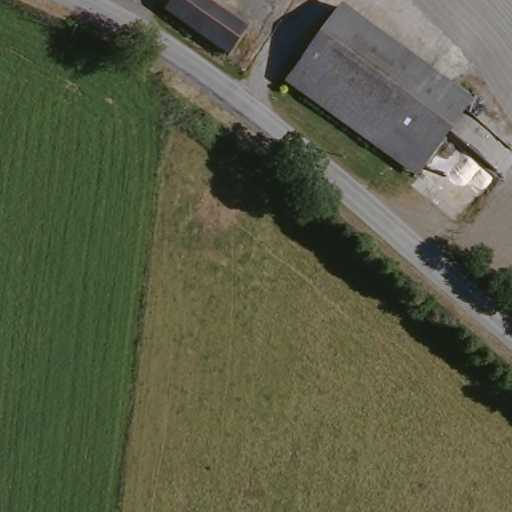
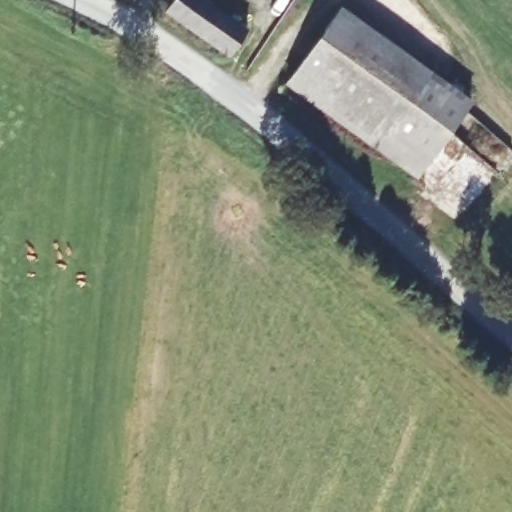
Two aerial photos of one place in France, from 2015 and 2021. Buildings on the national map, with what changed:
unchanged [(170,0),(205,0),(245,28),(227,56),(162,11),(170,0)]
unchanged [(395,161),(285,82),(334,14),(464,110),(425,164),(416,177),(395,161)]

